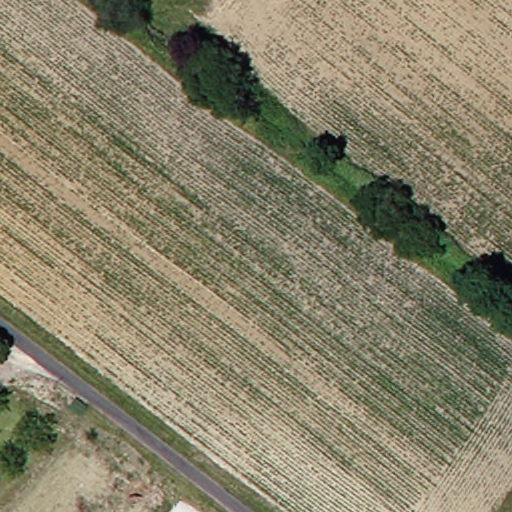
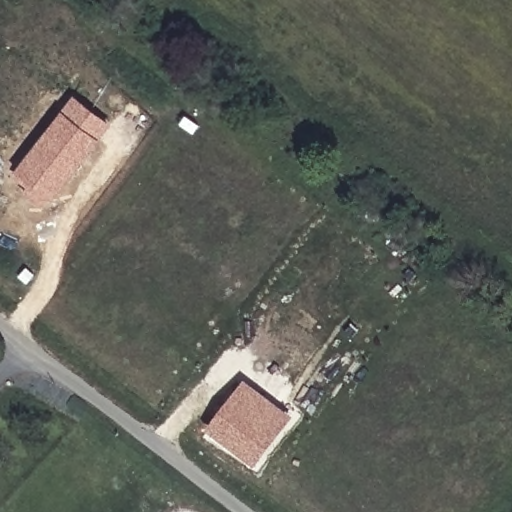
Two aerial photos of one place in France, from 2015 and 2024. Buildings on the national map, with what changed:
new [(44,209),(22,193),(28,184),(12,173),(72,92),(110,124),(44,209)]
new [(255,471),(206,434),(245,381),(293,419),(255,471)]

